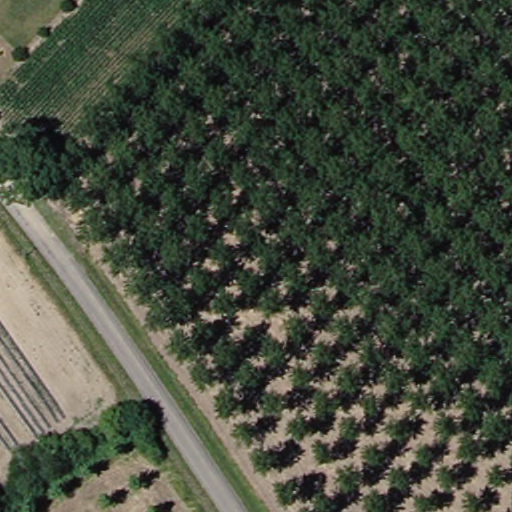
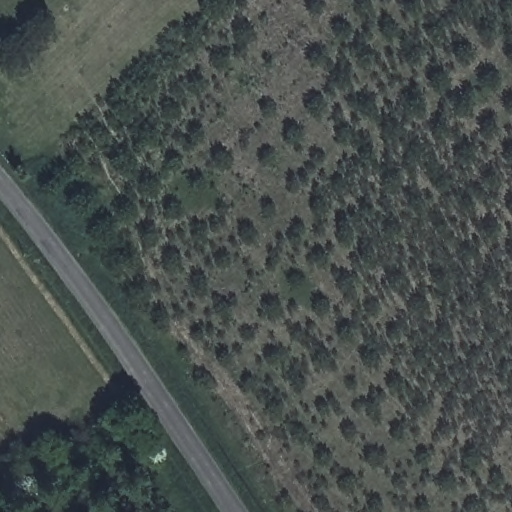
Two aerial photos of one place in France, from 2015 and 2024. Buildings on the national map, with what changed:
[]

